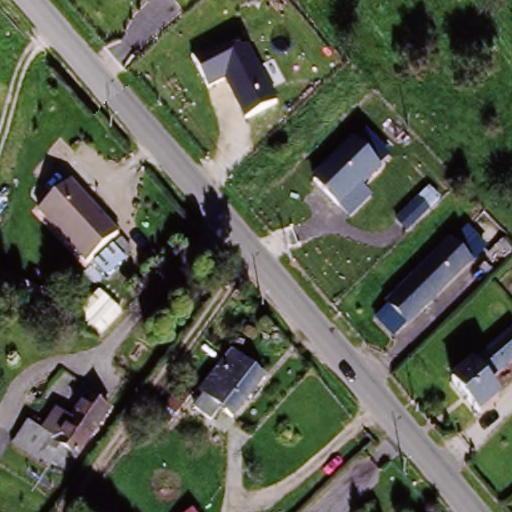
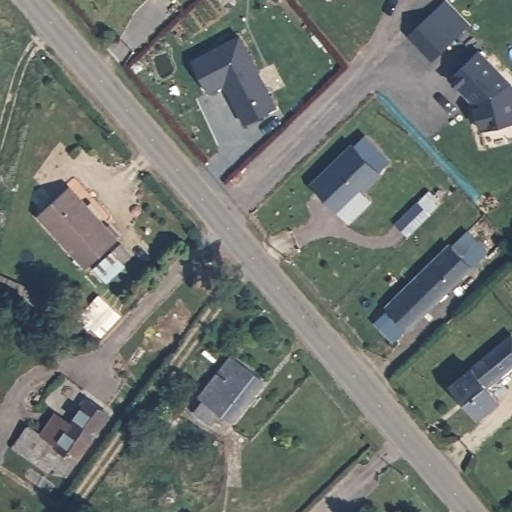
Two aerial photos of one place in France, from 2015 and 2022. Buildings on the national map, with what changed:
new [(432,9),(456,34),(434,55),(410,30),(432,9)]
unchanged [(243,34),(277,106),(245,124),(225,86),(208,93),(192,57),(243,34)]
new [(480,45),(512,77),(512,117),(482,125),(475,94),(465,84),(462,84),(451,73),(480,45)]
unchanged [(365,134),(392,159),(379,173),(381,175),(363,192),(372,204),(350,225),(313,182),(365,134)]
unchanged [(85,269),(40,216),(72,189),(117,242),(85,269)]
unchanged [(428,189),(442,202),(408,238),(395,222),(428,189)]
unchanged [(380,321),(463,234),(470,242),(458,253),(470,265),(399,340),(380,321)]
unchanged [(486,386),(498,401),(479,417),(453,385),(512,338),(512,366),(486,386)]
unchanged [(203,390),(232,354),(261,377),(232,414),(203,390)]
unchanged [(32,465),(0,437),(0,432),(12,416),(26,427),(44,405),(60,417),(77,394),(97,409),(51,469),(37,459),(32,465)]

